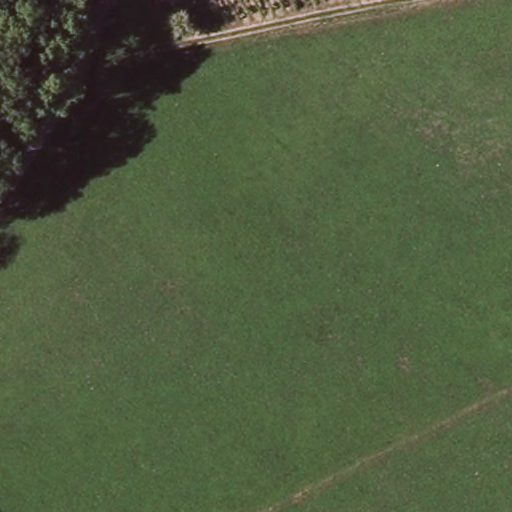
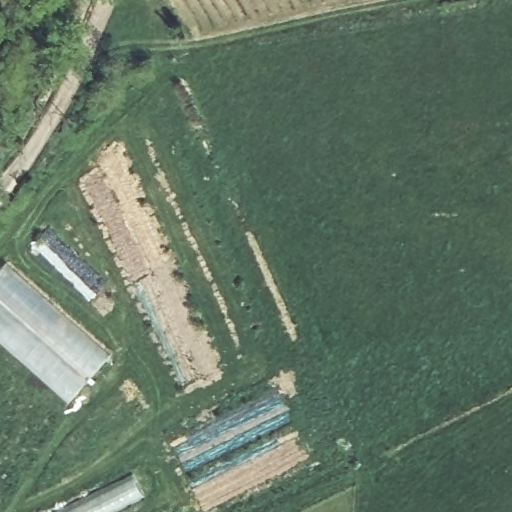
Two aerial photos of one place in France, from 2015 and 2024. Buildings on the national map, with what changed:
new [(111,353),(68,404),(0,341),(0,271),(7,262),(111,353)]

